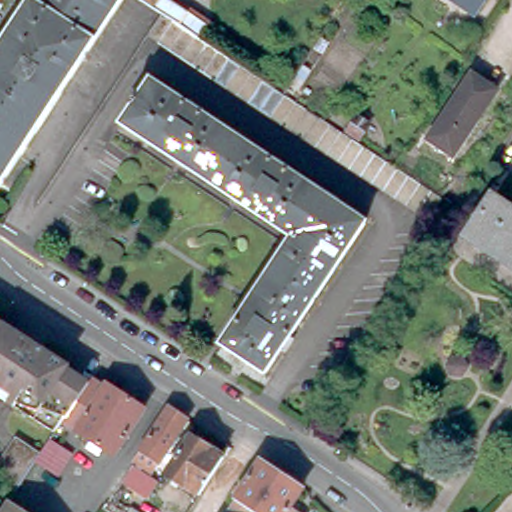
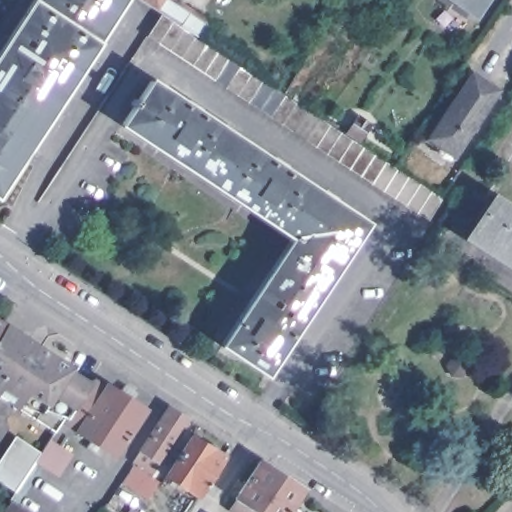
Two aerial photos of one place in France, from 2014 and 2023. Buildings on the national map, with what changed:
unchanged [(32,0),(121,0),(56,100),(0,184),(0,48),(12,30),(32,0)]
unchanged [(207,26),(200,38),(179,25),(163,14),(142,0),(169,0),(207,26)]
unchanged [(469,7),(459,0),(473,0),(469,7)]
unchanged [(428,222),(404,206),(242,100),(147,38),(163,14),(179,25),(200,38),(277,90),(284,94),(323,120),(345,134),(358,115),(371,124),(358,142),(365,147),(420,183),(444,198),(428,222)]
unchanged [(135,104),(132,101),(137,93),(141,96),(153,77),(252,143),(340,202),(366,220),(299,322),(267,369),(225,340),(267,277),(294,236),(206,177),(123,122),(135,104)]
unchanged [(472,78),(495,93),(452,155),(429,140),(472,78)]
unchanged [(467,234),(493,193),(512,205),(512,263),(467,234)]
unchanged [(0,330),(0,321),(4,324),(0,330)]
unchanged [(42,349),(64,362),(65,359),(72,364),(69,370),(90,383),(67,416),(65,415),(55,431),(0,395),(0,330),(4,324),(42,349)]
unchanged [(90,383),(92,380),(105,388),(108,384),(120,391),(124,385),(136,394),(132,399),(145,409),(115,454),(64,422),(67,416),(90,383)]
unchanged [(127,463),(164,406),(182,419),(145,473),(144,474),(137,481),(116,512),(102,503),(115,482),(127,463)]
unchanged [(187,431),(219,451),(194,490),(162,470),(187,431)]
unchanged [(72,451),(64,464),(56,477),(34,462),(27,472),(15,490),(0,479),(0,459),(17,435),(42,451),(42,450),(50,437),(72,451)]
unchanged [(258,464),(261,461),(302,488),(294,504),(291,508),(297,512),(233,512),(229,509),(258,464)]
unchanged [(27,512),(0,512),(0,507),(6,498),(27,512)]
unchanged [(132,512),(125,512),(127,509),(132,512)]

